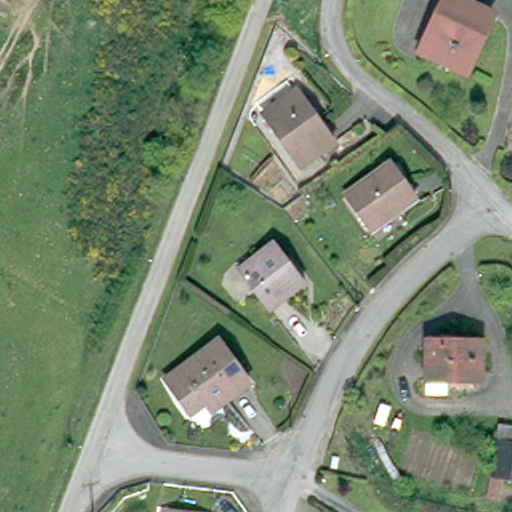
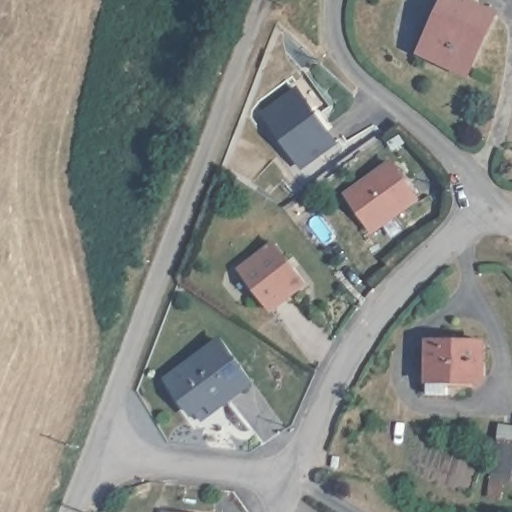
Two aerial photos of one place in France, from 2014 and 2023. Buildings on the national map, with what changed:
unchanged [(424,52),(448,0),(456,0),(493,16),(468,73),(424,52)]
unchanged [(305,91),(335,140),(301,160),(270,111),(305,91)]
unchanged [(422,203),(373,230),(352,194),(399,166),(422,203)]
unchanged [(271,313),(243,272),(276,249),(280,247),(297,272),(308,288),(271,313)]
unchanged [(491,376),(437,384),(432,350),(486,340),(491,376)]
unchanged [(196,411),(173,376),(225,341),(254,383),(226,402),(221,396),(196,411)]
unchanged [(498,425),(512,427),(512,484),(487,479),(498,425)]

